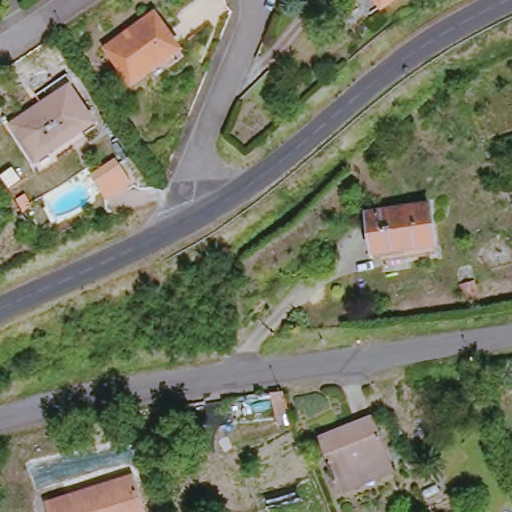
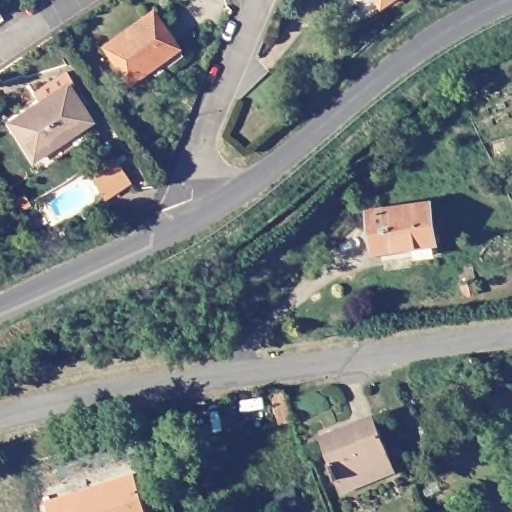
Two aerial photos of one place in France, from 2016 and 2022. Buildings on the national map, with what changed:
unchanged [(381,5),(377,0),(389,0),(381,5)]
unchanged [(173,46),(127,80),(107,50),(153,17),(173,46)]
unchanged [(90,116),(80,125),(83,130),(54,151),(43,139),(30,150),(10,120),(40,100),(36,95),(62,76),(90,116)]
unchanged [(122,154),(138,176),(113,194),(98,170),(122,154)]
unchanged [(432,242),(370,254),(363,214),(424,203),(432,242)]
unchanged [(480,294),(467,298),(462,284),(476,280),(480,294)]
unchanged [(338,490),(335,481),(332,475),(330,475),(324,460),(325,458),(315,436),(368,414),(387,460),(390,468),(338,490)]
unchanged [(128,468),(142,510),(143,512),(44,512),(39,497),(128,468)]

